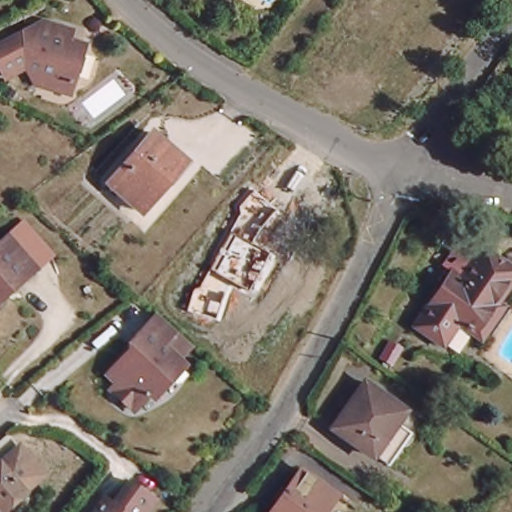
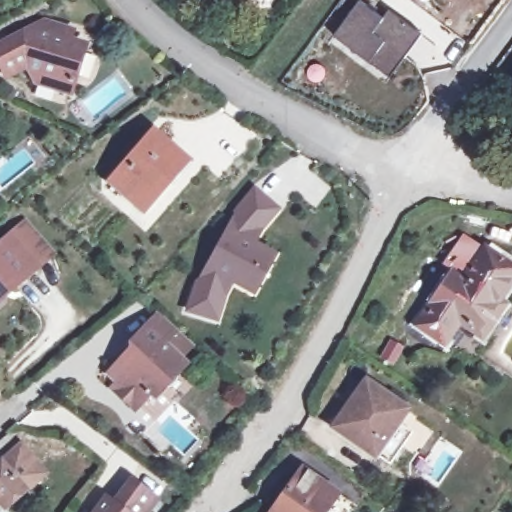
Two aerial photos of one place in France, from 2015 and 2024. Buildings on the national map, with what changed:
new [(333,37),(361,1),(387,20),(392,11),(420,31),(402,56),(383,43),(367,63),(333,37)]
unchanged [(47,27),(50,18),(75,25),(72,35),(87,40),(72,88),(39,78),(30,60),(9,71),(0,54),(0,43),(37,24),(47,27)]
unchanged [(167,145),(182,159),(164,179),(167,182),(142,209),(109,181),(150,132),(167,145)]
new [(225,298),(218,323),(184,313),(195,279),(233,214),(254,186),(281,209),(263,231),(257,243),(277,254),(254,297),(233,285),(225,298)]
unchanged [(14,285),(10,281),(3,286),(2,295),(0,297),(0,241),(14,229),(41,261),(14,285)]
unchanged [(435,284),(467,238),(488,253),(456,299),(445,291),(435,284)]
unchanged [(456,299),(488,253),(512,269),(512,289),(497,312),(502,315),(490,333),(467,317),(447,346),(420,328),(445,291),(456,299)]
unchanged [(135,349),(129,343),(144,326),(155,314),(172,330),(161,342),(184,363),(152,397),(148,393),(132,409),(110,387),(115,381),(107,373),(117,362),(121,364),(135,349)]
unchanged [(401,346),(390,364),(379,357),(390,339),(401,346)]
unchanged [(399,404),(390,417),(404,427),(382,457),(368,448),(367,449),(327,422),(360,378),(399,404)]
unchanged [(0,502),(0,461),(19,445),(32,462),(42,474),(5,508),(0,502)]
unchanged [(337,494),(349,502),(341,512),(269,512),(300,468),(337,494)]
unchanged [(154,498),(144,512),(93,512),(101,501),(109,507),(129,480),(154,498)]

